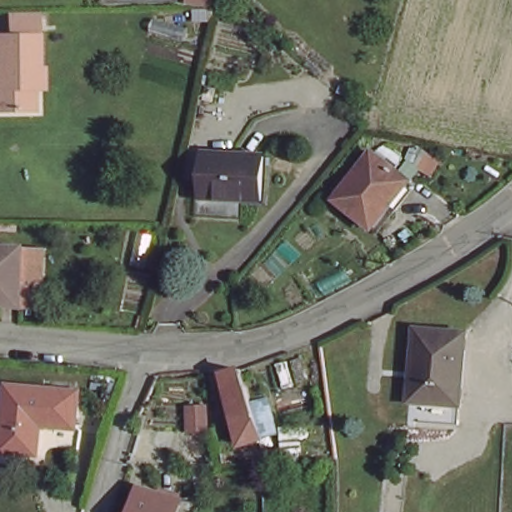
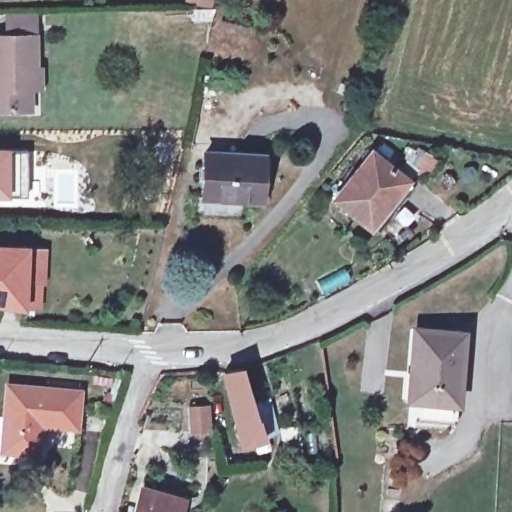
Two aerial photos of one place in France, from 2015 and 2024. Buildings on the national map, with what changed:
unchanged [(215,8),(182,5),(183,0),(216,0),(215,8)]
unchanged [(34,15),(35,66),(27,66),(27,102),(0,101),(0,35),(4,36),(3,15),(34,15)]
new [(10,147),(10,150),(28,150),(29,196),(9,197),(0,197),(0,146),(10,147)]
unchanged [(405,178),(364,231),(327,204),(367,151),(405,178)]
unchanged [(258,202),(200,201),(201,153),(260,155),(258,202)]
unchanged [(25,248),(24,282),(37,284),(35,308),(20,306),(0,304),(0,246),(25,248)]
unchanged [(467,340),(458,412),(441,411),(420,407),(423,377),(414,376),(420,335),(447,337),(467,340)]
unchanged [(248,368),(272,431),(249,442),(220,377),(248,368)]
unchanged [(77,386),(73,420),(38,417),(36,444),(0,440),(0,431),(6,379),(77,386)]
new [(205,415),(208,440),(188,442),(186,417),(205,415)]
unchanged [(174,512),(134,512),(142,484),(179,493),(174,512)]

